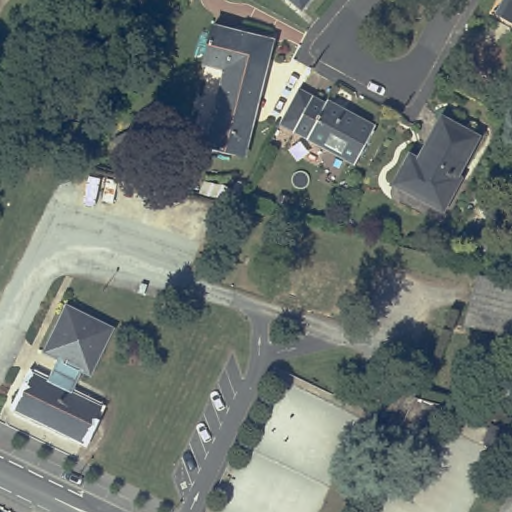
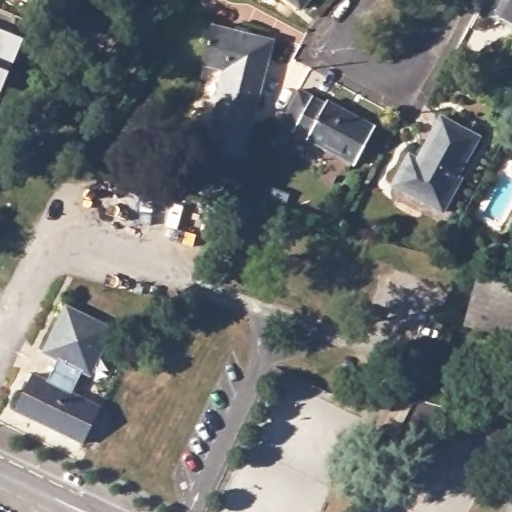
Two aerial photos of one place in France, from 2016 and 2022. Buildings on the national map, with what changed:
unchanged [(290,0),(302,0),(297,5),(290,0)]
unchanged [(512,0),(512,15),(498,7),(502,0),(512,0)]
unchanged [(224,70),(203,65),(212,25),(273,40),(246,156),(206,147),(224,70)]
new [(23,38),(9,70),(1,91),(0,91),(0,30),(23,38)]
unchanged [(307,88),(334,104),(335,101),(354,112),(352,116),(365,124),(368,121),(383,130),(361,166),(287,122),(307,88)]
unchanged [(480,137),(458,177),(461,179),(444,212),(392,185),(403,165),(409,154),(418,159),(441,116),(480,137)]
unchanged [(512,284),(512,337),(464,324),(477,275),(512,284)]
unchanged [(37,372),(52,380),(62,358),(49,352),(71,306),(118,328),(95,375),(86,371),(77,392),(105,405),(88,442),(19,410),(37,372)]
unchanged [(415,398),(446,407),(423,456),(393,441),(415,398)]

